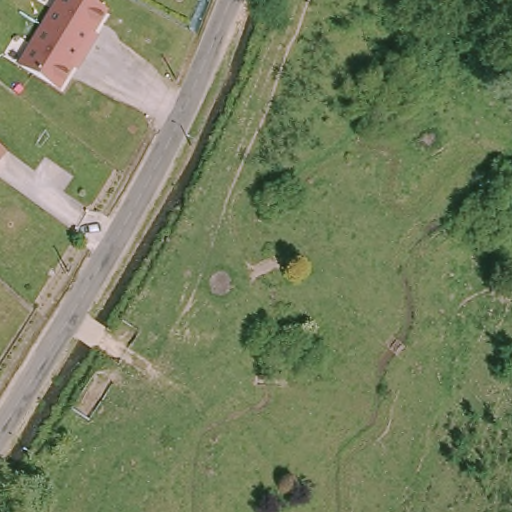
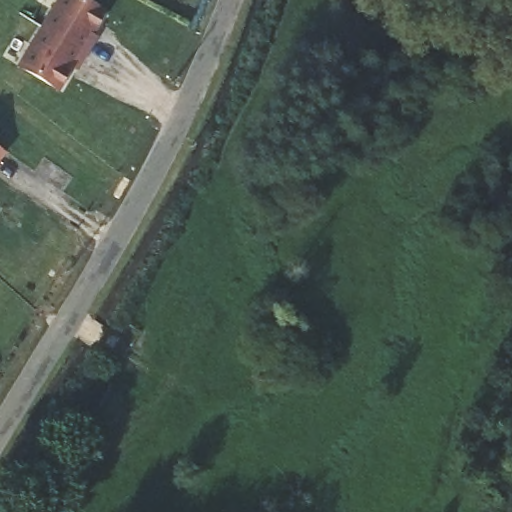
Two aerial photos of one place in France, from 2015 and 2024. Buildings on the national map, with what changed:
unchanged [(18,66),(57,0),(92,0),(112,12),(63,92),(18,66)]
unchanged [(0,153),(0,138),(8,144),(0,153)]

